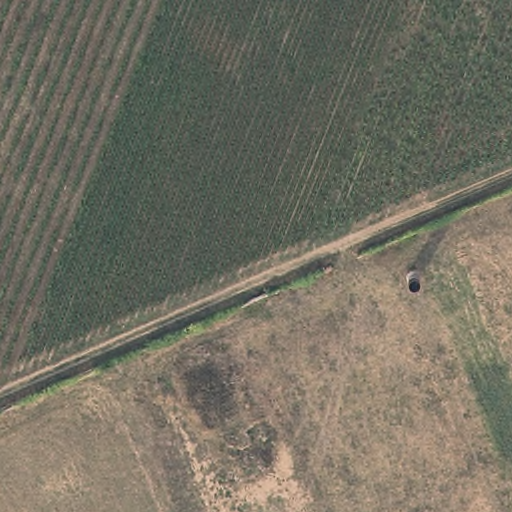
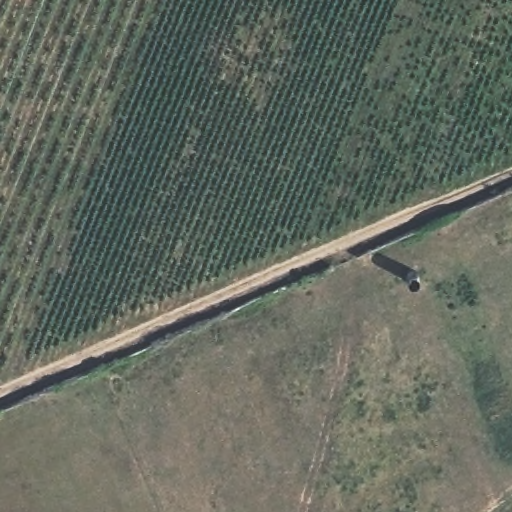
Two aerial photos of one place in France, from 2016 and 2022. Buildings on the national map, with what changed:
[]

